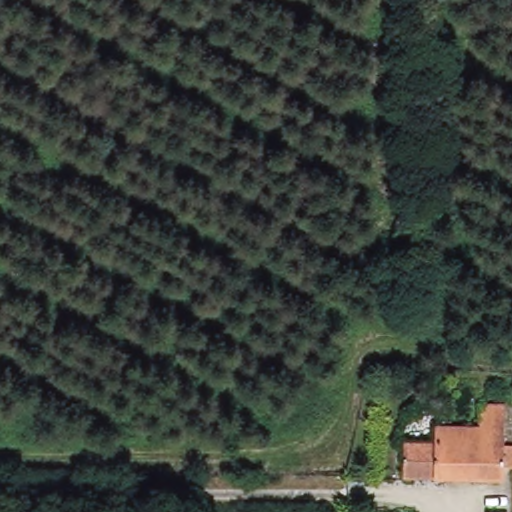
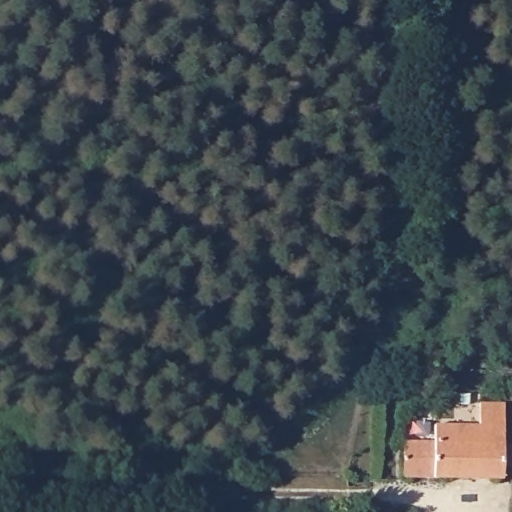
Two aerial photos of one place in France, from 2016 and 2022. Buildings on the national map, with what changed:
unchanged [(449,398),(449,410),(432,410),(429,410),(430,398),(449,398)]
unchanged [(439,445),(440,424),(485,426),(485,405),(510,405),(509,444),(512,445),(512,468),(510,468),(509,480),(412,478),(414,445),(439,445)]

